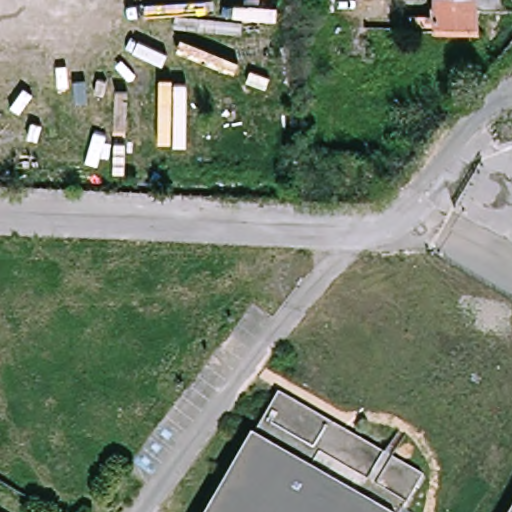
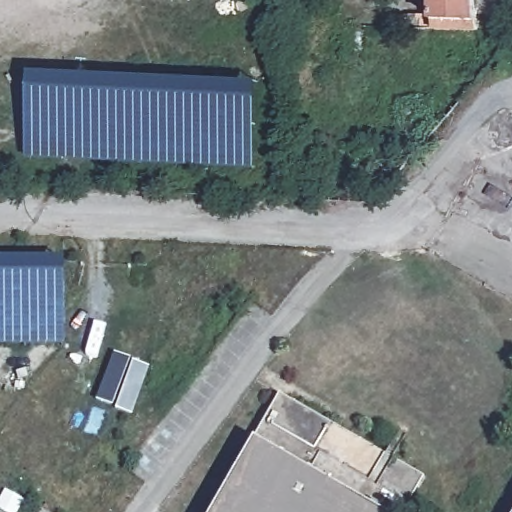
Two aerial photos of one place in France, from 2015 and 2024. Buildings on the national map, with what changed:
unchanged [(436,27),(436,0),(477,0),(480,29),(436,27)]
new [(27,159),(31,71),(260,82),(256,170),(27,159)]
new [(58,257),(59,344),(0,345),(0,258),(58,257)]
new [(115,408),(96,400),(114,352),(132,360),(150,366),(132,413),(115,408)]
unchanged [(275,392),(424,476),(404,512),(207,512),(275,392)]
unchanged [(512,512),(511,512),(512,511),(512,512)]

